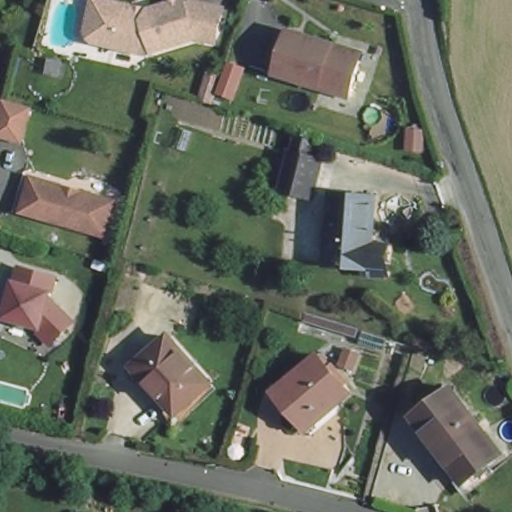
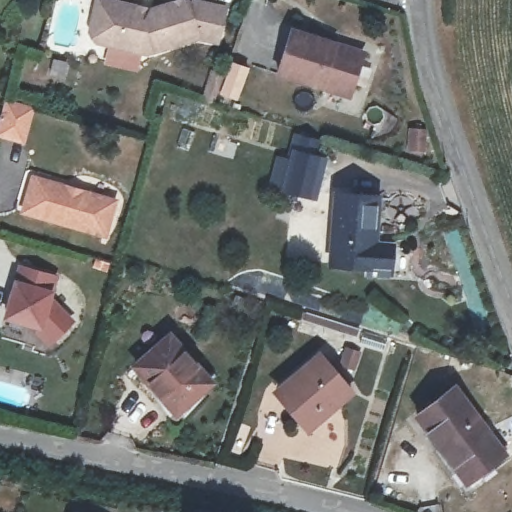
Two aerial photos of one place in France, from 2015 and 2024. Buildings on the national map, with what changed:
unchanged [(146,3),(158,0),(210,0),(221,3),(214,36),(195,32),(144,46),(93,35),(88,26),(91,14),(92,10),(94,0),(128,0),(135,2),(146,3)]
unchanged [(276,67),(289,25),(359,47),(346,90),(276,67)]
unchanged [(0,138),(0,118),(8,98),(38,106),(25,145),(0,138)]
unchanged [(315,148),(311,165),(320,168),(309,204),(308,203),(281,195),(296,142),(315,148)]
unchanged [(121,210),(111,243),(29,218),(38,185),(121,210)]
unchanged [(351,276),(353,270),(319,257),(339,190),(380,202),(365,244),(369,246),(368,249),(383,254),(374,284),(351,276)]
unchanged [(38,323),(41,319),(7,309),(21,260),(56,270),(50,291),(73,315),(54,333),(50,336),(38,323)]
unchanged [(175,414),(133,366),(167,335),(209,384),(175,414)]
unchanged [(306,425),(275,386),(318,351),(351,391),(306,425)]
unchanged [(418,416),(455,389),(505,457),(467,484),(418,416)]

